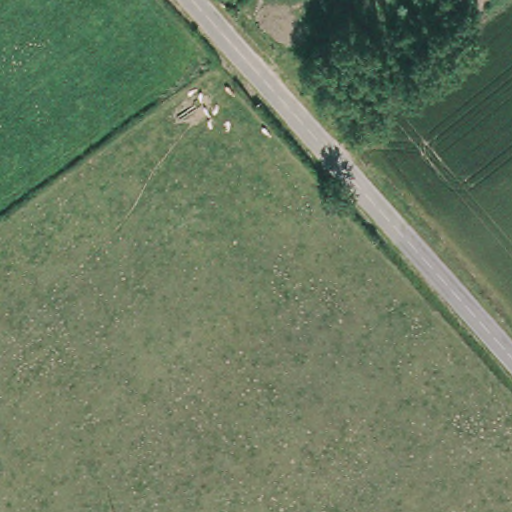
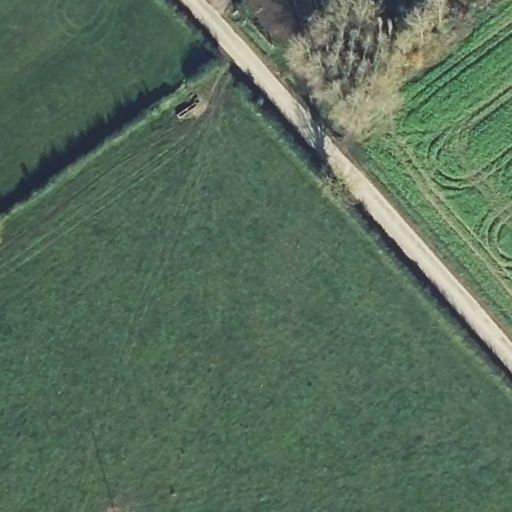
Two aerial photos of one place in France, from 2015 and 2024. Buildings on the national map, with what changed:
[]

